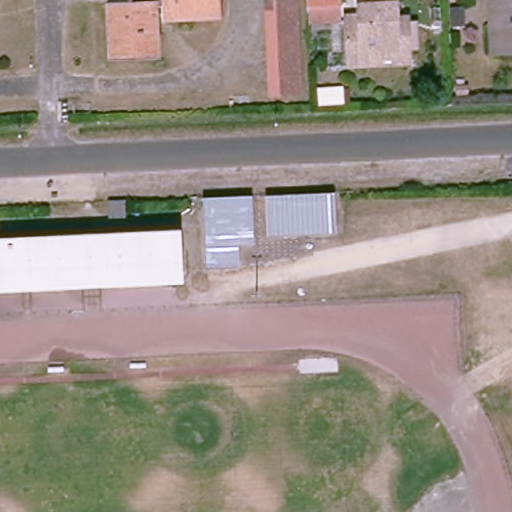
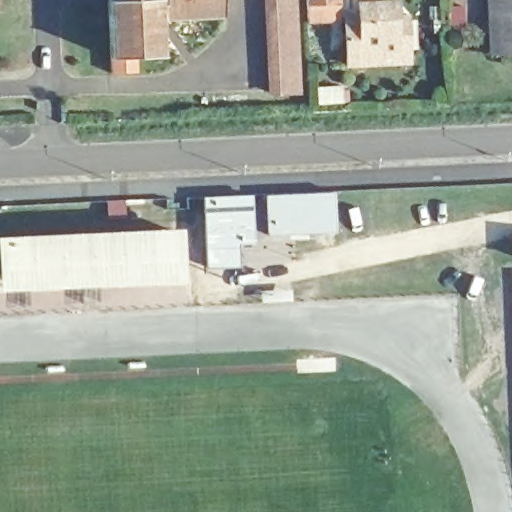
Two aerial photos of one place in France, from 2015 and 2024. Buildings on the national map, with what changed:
unchanged [(231,15),(166,19),(166,10),(150,12),(153,54),(106,56),(104,1),(116,0),(230,0),(231,15)]
unchanged [(300,97),(271,97),(267,0),(295,0),(300,97)]
unchanged [(345,8),(313,10),(313,0),(345,0),(345,8)]
unchanged [(414,67),(376,70),(355,70),(350,21),(363,20),(363,0),(389,0),(389,7),(401,7),(402,23),(412,22),(414,67)]
unchanged [(488,14),(488,0),(512,0),(512,50),(490,50),(488,14)]
unchanged [(268,235),(265,195),(335,193),(337,235),(268,235)]
unchanged [(240,267),(205,268),(203,197),(251,195),(255,245),(239,246),(240,267)]
unchanged [(79,244),(180,236),(183,280),(0,288),(0,244),(79,244)]

